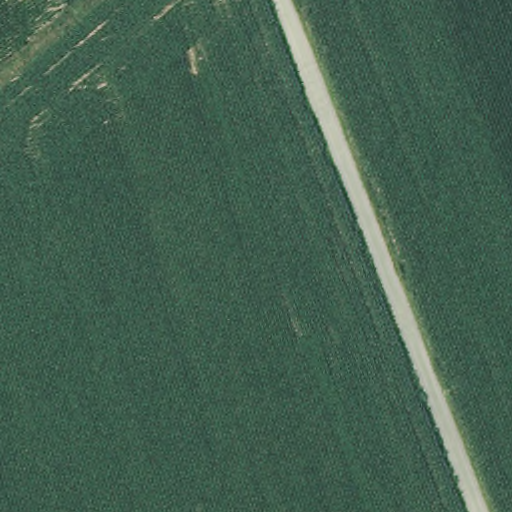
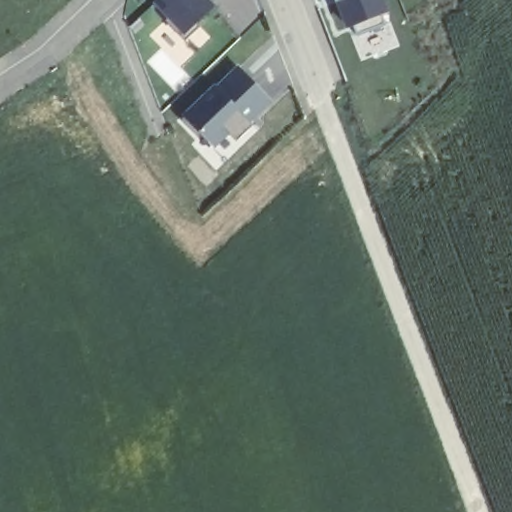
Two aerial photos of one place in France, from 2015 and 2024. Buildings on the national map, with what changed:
new [(211,2),(215,6),(195,25),(198,27),(184,41),(165,21),(168,19),(154,4),(158,0),(213,0),(211,2)]
new [(356,36),(354,26),(344,29),(334,0),(384,0),(389,12),(383,15),(386,25),(356,36)]
new [(249,125),(251,127),(236,141),(229,134),(215,149),(183,115),(214,84),(216,86),(238,65),(273,101),(249,125)]

